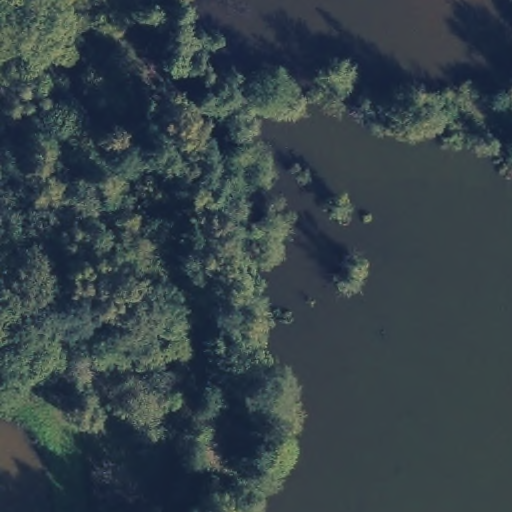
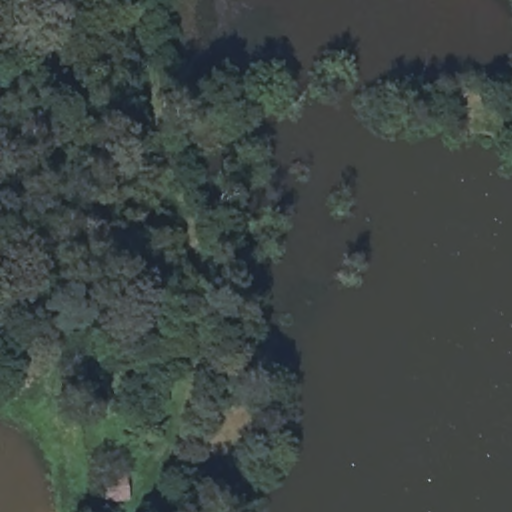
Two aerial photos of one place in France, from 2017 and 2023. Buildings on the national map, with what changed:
unchanged [(128,470),(132,502),(100,505),(98,472),(128,470)]

